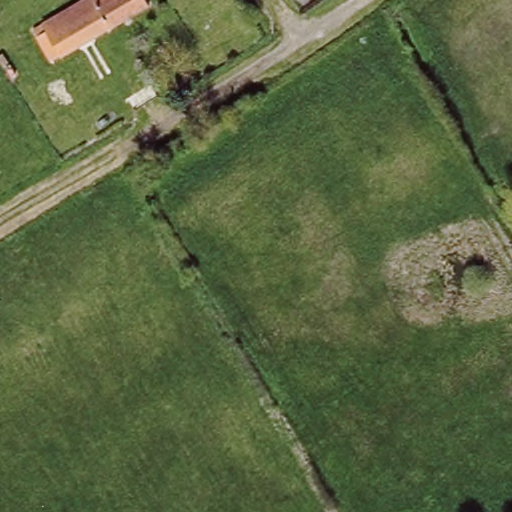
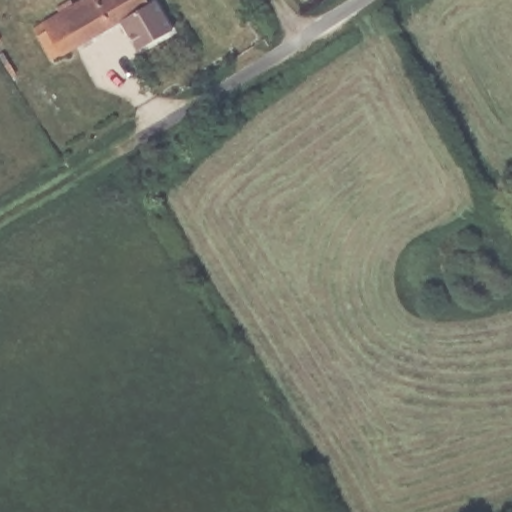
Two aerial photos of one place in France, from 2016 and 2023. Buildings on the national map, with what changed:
unchanged [(152,0),(153,1),(53,56),(35,24),(78,0),(152,0)]

